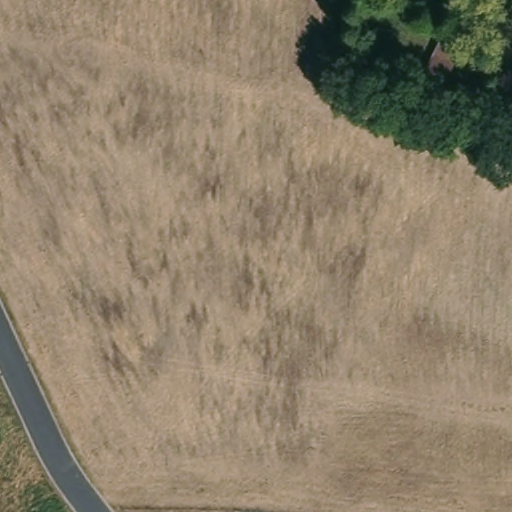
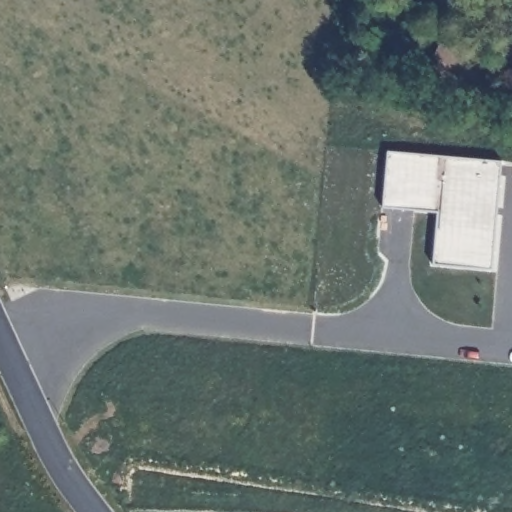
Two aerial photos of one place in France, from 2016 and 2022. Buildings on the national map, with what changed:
unchanged [(442,38),(428,67),(412,57),(427,30),(442,38)]
new [(432,259),(435,209),(382,204),(387,150),(499,160),(488,265),(432,259)]

